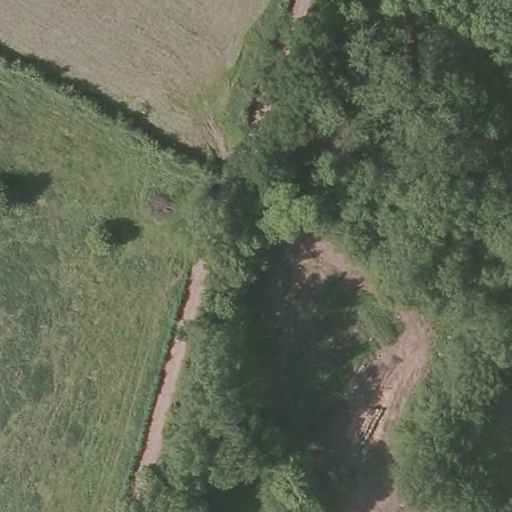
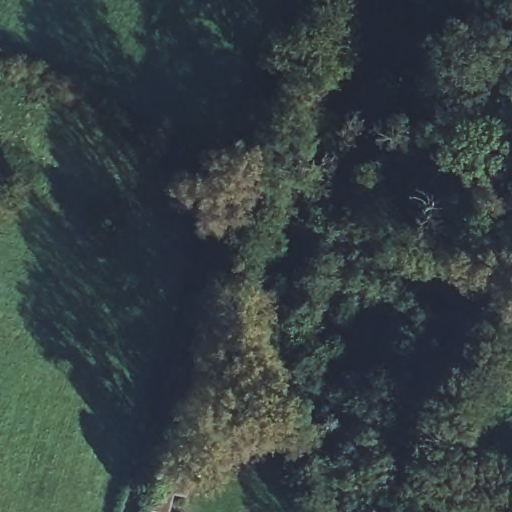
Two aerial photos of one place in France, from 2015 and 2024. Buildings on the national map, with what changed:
[]

